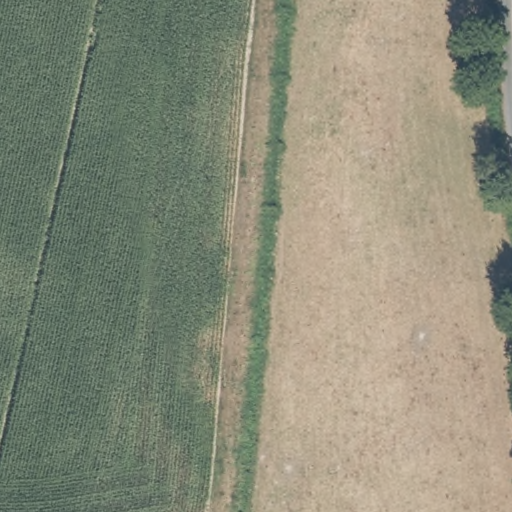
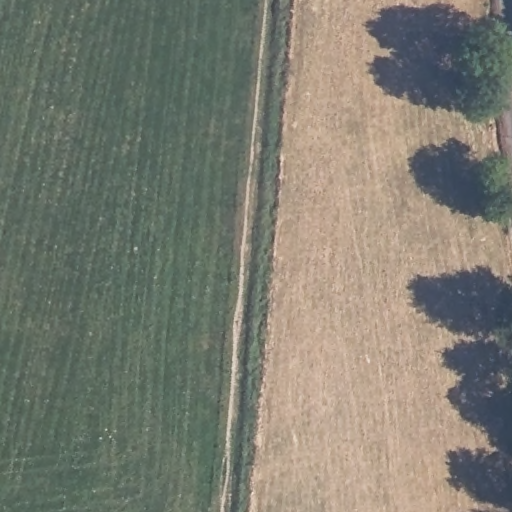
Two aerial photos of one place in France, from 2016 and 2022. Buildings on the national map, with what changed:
[]

